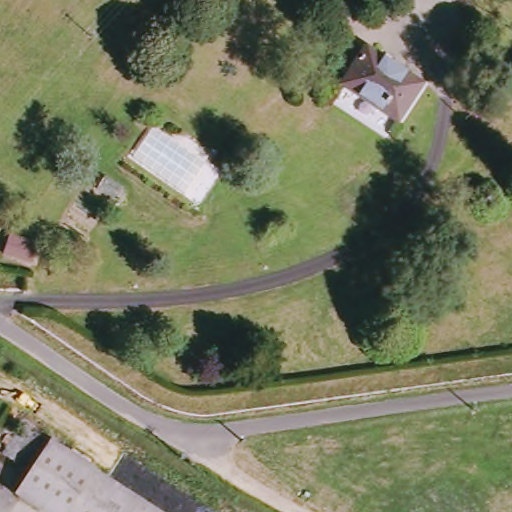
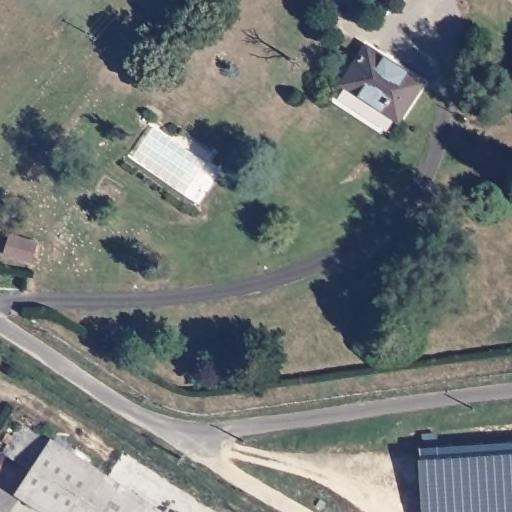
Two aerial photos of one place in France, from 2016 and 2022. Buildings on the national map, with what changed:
unchanged [(424,87),(397,125),(346,86),(375,47),(424,87)]
unchanged [(55,439),(99,471),(167,512),(44,512),(16,497),(55,439)]
new [(423,459),(422,447),(512,442),(512,512),(422,512),(420,459),(423,459)]

